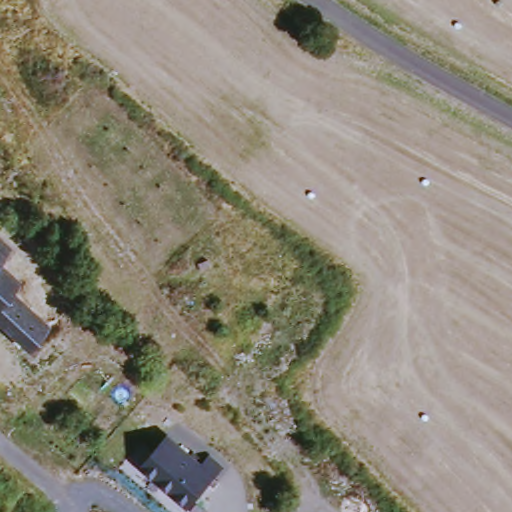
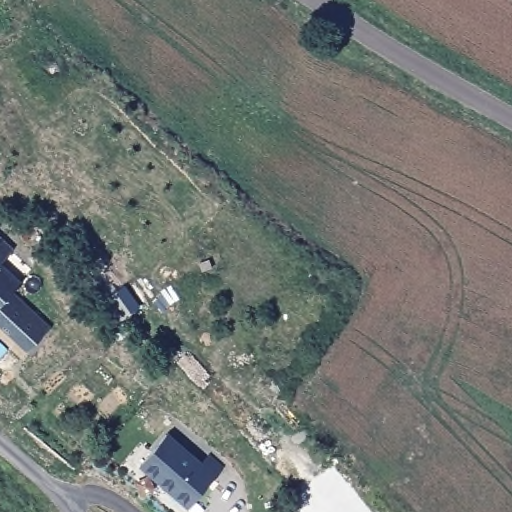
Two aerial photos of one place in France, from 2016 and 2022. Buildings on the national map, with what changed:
unchanged [(11,251),(4,261),(21,280),(15,288),(51,326),(30,352),(0,326),(0,241),(11,251)]
unchanged [(141,468),(169,436),(204,466),(209,459),(223,472),(188,511),(141,468)]

